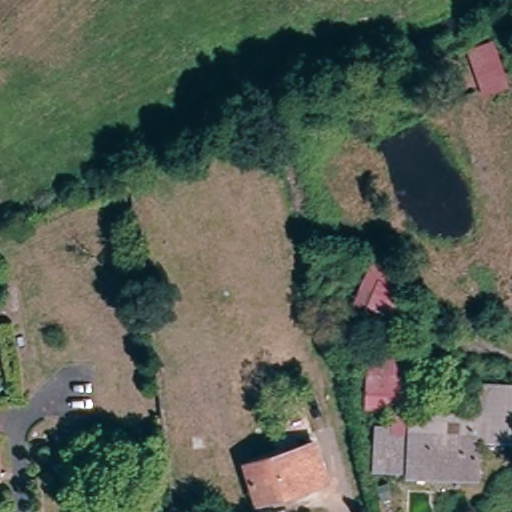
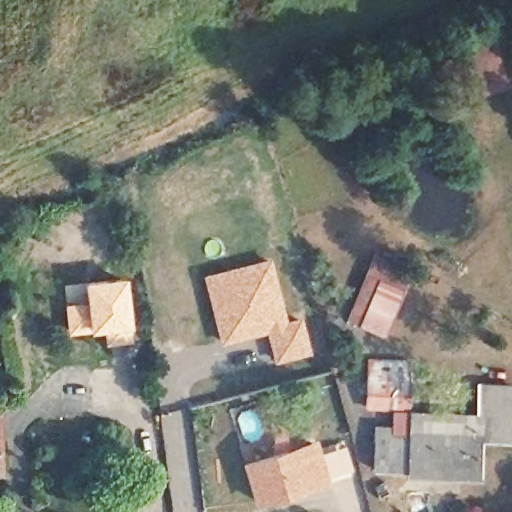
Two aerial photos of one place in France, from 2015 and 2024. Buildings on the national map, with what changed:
new [(271,256),(287,318),(303,314),(314,355),(272,364),(264,333),(219,345),(200,273),(271,256)]
new [(83,300),(80,280),(125,275),(134,341),(104,345),(101,330),(66,334),(65,301),(83,300)]
unchanged [(382,337),(358,327),(378,280),(403,290),(382,337)]
unchanged [(412,434),(394,433),(396,411),(365,408),(370,358),(421,363),(415,411),(412,434)]
unchanged [(474,418),(476,393),(507,396),(503,446),(474,444),(472,477),(392,471),(394,433),(412,434),(415,411),(474,418)]
unchanged [(312,443),(324,483),(260,502),(248,463),(312,443)]

